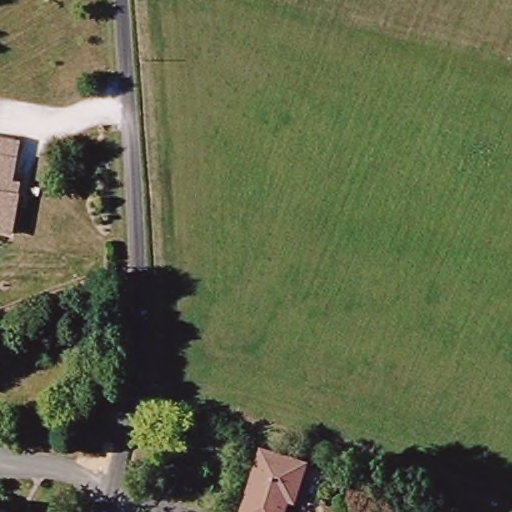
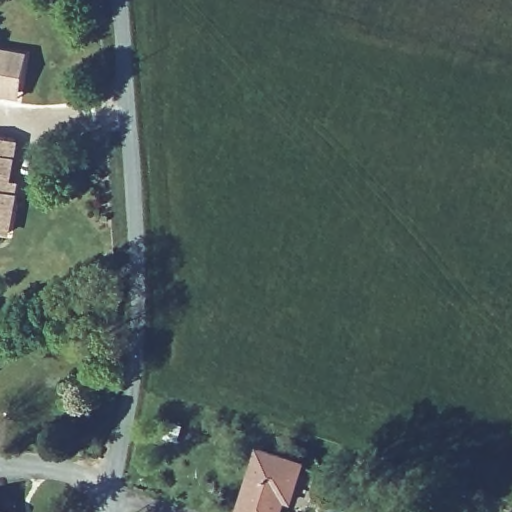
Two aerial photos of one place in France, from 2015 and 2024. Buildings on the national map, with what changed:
new [(29,52),(22,96),(0,92),(0,47),(29,52)]
unchanged [(21,198),(15,237),(0,235),(0,140),(20,143),(15,185),(24,186),(21,198)]
unchanged [(292,499),(288,512),(243,512),(263,450),(309,465),(300,493),(297,501),(292,499)]
unchanged [(7,512),(0,512),(0,510),(7,512)]

